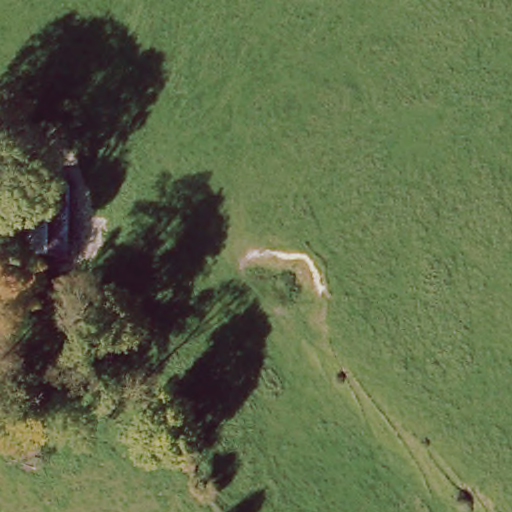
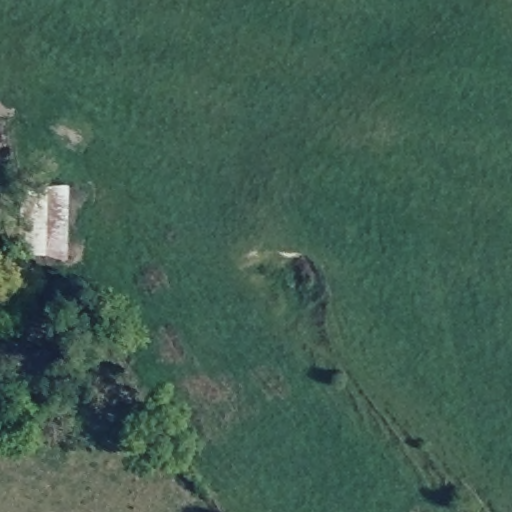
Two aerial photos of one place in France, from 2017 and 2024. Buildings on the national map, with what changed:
unchanged [(67,255),(30,255),(32,185),(70,186),(67,255)]

